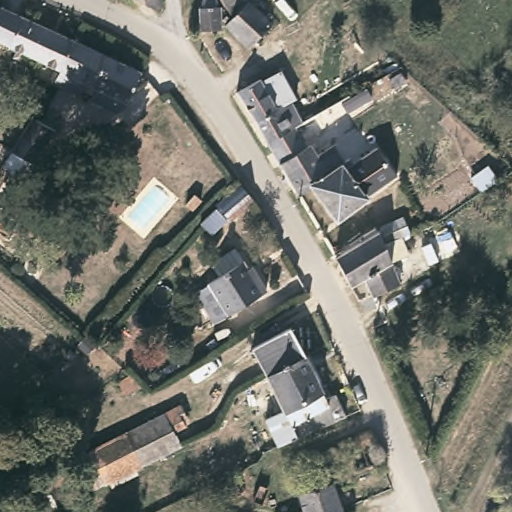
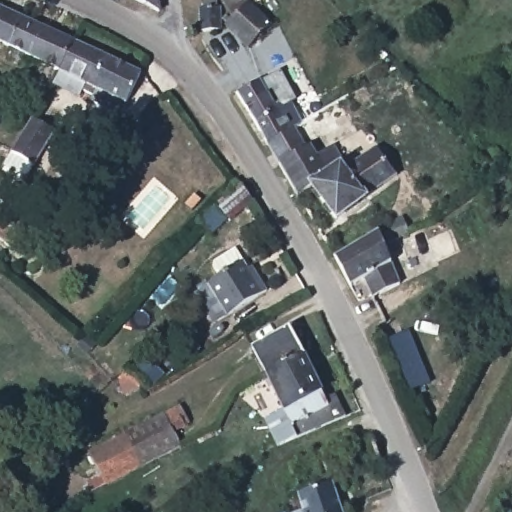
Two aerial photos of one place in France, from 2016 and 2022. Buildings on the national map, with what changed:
unchanged [(154,17),(120,0),(154,0),(154,17)]
unchanged [(206,4),(205,0),(218,0),(217,3),(222,5),(223,28),(204,28),(202,4),(206,4)]
unchanged [(258,10),(274,25),(252,45),(227,22),(238,11),(229,0),(250,0),(258,10)]
unchanged [(21,16),(8,46),(0,42),(0,6),(21,16)]
unchanged [(70,39),(56,69),(8,46),(21,16),(70,39)]
unchanged [(137,70),(120,107),(78,86),(79,80),(56,69),(70,39),(137,70)]
unchanged [(291,131),(264,147),(233,95),(256,80),(274,111),(289,103),(302,125),(291,131)]
unchanged [(344,100),(345,99),(353,112),(332,122),(332,128),(306,145),(314,158),(334,145),(350,166),(357,162),(351,152),(364,144),(391,180),(335,221),(309,186),(295,198),(277,169),(264,147),(291,131),(302,125),(344,100)]
unchanged [(45,126),(20,167),(8,168),(0,162),(0,161),(29,115),(45,126)]
unchanged [(40,192),(12,229),(0,218),(0,203),(21,176),(40,192)]
unchanged [(248,200),(232,219),(225,215),(209,232),(200,225),(236,182),(248,200)]
unchanged [(368,299),(360,280),(346,286),(331,258),(372,236),(377,247),(386,242),(380,230),(399,220),(406,231),(395,237),(405,257),(386,265),(395,286),(368,299)]
unchanged [(239,260),(251,278),(255,275),(264,290),(213,325),(192,295),(205,286),(204,285),(239,260)]
unchanged [(251,358),(256,354),(291,335),(304,365),(264,384),(251,358)]
unchanged [(317,396),(276,415),(264,384),(304,365),(317,396)]
unchanged [(320,403),(337,398),(347,419),(271,451),(258,422),(276,415),(317,396),(320,403)]
unchanged [(87,486),(92,483),(78,456),(167,410),(173,418),(168,422),(176,433),(166,440),(172,452),(97,493),(92,495),(83,500),(78,490),(87,486)]
unchanged [(330,486),(338,512),(297,512),(293,500),(330,486)]

